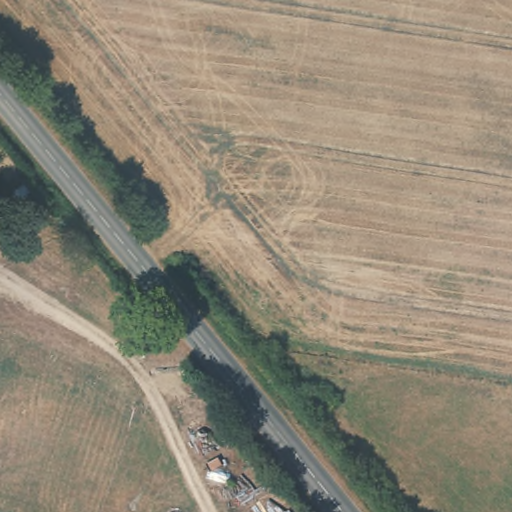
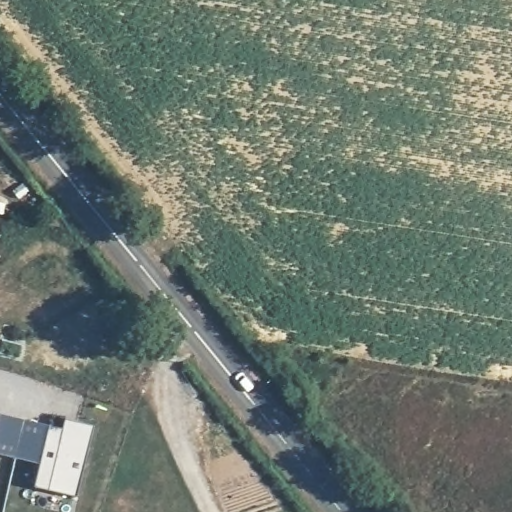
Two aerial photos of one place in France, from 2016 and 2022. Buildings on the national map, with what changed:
new [(41,464),(0,454),(0,414),(64,429),(66,419),(95,425),(78,496),(36,486),(41,464)]

